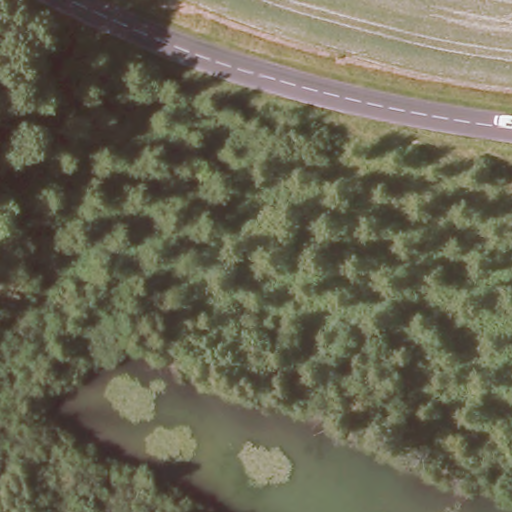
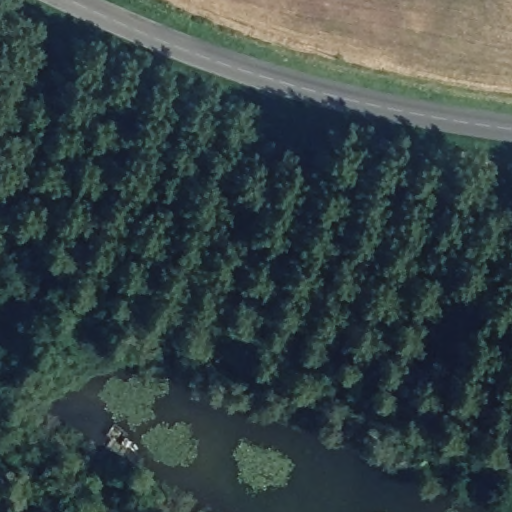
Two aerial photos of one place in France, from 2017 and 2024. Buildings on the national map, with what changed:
[]

